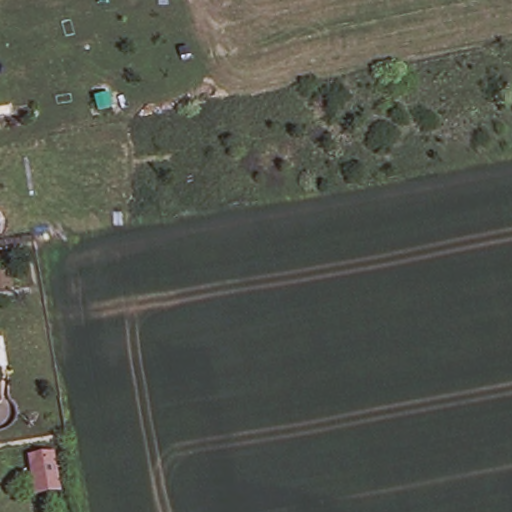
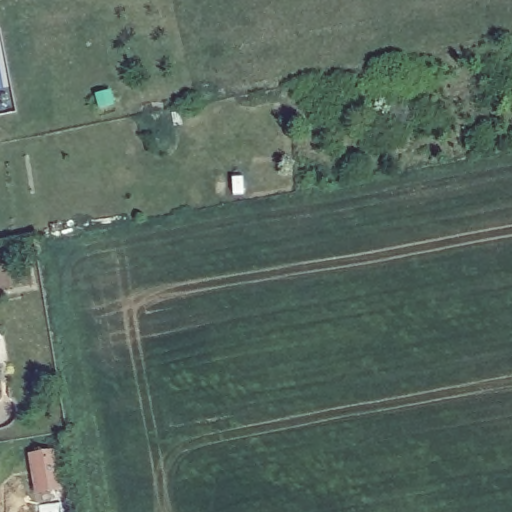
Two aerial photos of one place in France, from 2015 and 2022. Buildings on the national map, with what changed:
unchanged [(47,452),(55,486),(37,490),(27,457),(47,452)]

